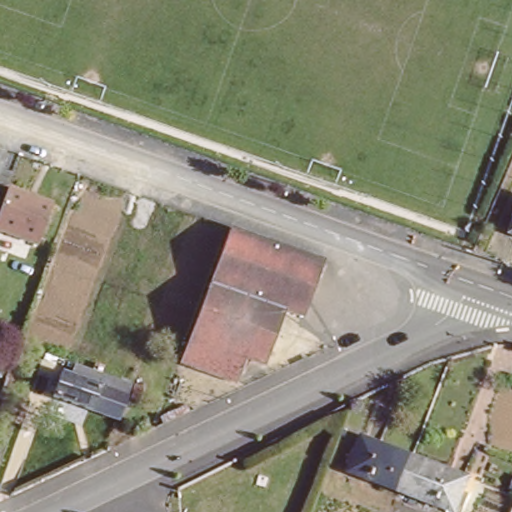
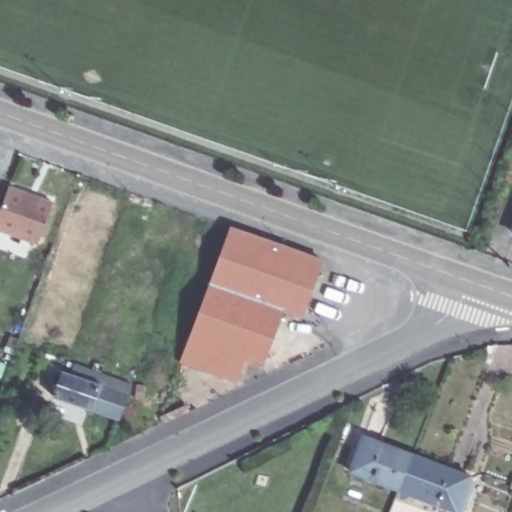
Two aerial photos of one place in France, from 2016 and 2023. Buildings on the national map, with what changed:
unchanged [(9,188),(52,204),(36,246),(0,232),(0,209),(9,188)]
unchanged [(326,260),(305,318),(287,312),(268,367),(256,363),(252,372),(247,370),(241,383),(180,362),(230,226),(326,260)]
unchanged [(119,419),(55,395),(64,371),(72,373),(76,363),(132,384),(119,419)]
unchanged [(456,512),(420,499),(397,490),(348,472),(362,436),(411,455),(433,463),(473,477),(460,512),(456,512)]

